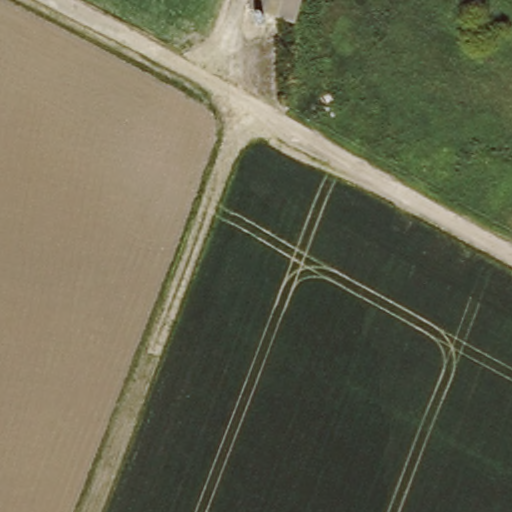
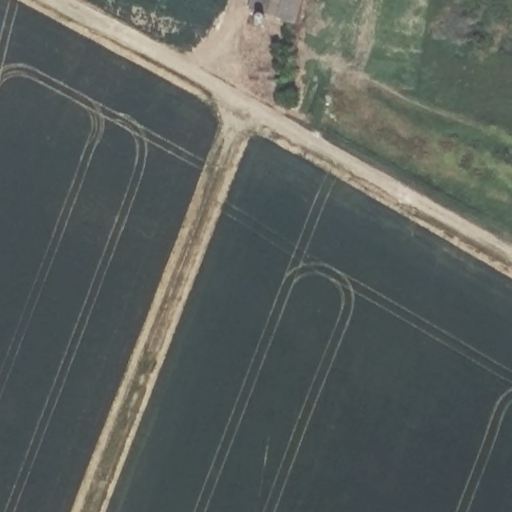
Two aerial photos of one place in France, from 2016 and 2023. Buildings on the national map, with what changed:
unchanged [(249,15),(254,0),(299,0),(290,27),(249,15)]

